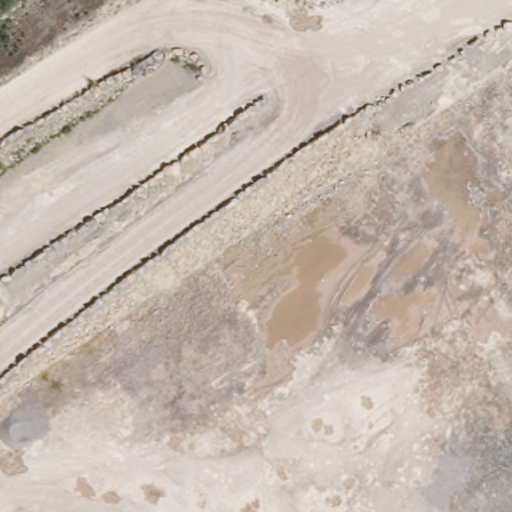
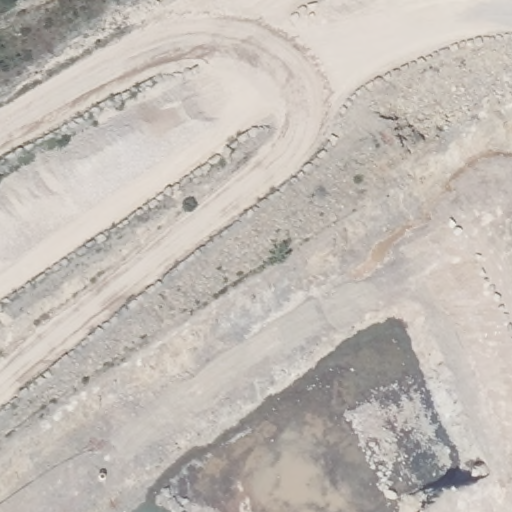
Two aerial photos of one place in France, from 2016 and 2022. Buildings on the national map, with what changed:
[]

